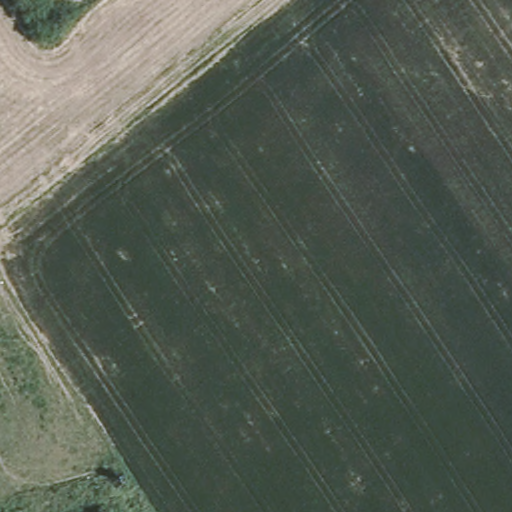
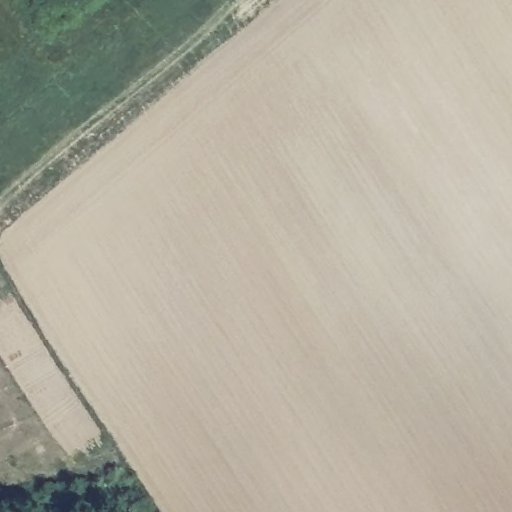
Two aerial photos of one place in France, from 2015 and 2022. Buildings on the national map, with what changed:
[]

